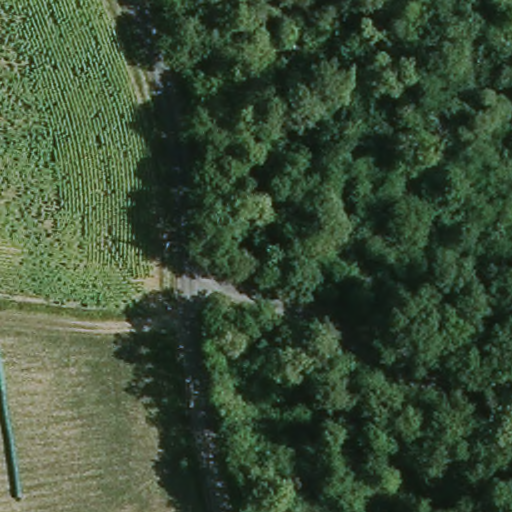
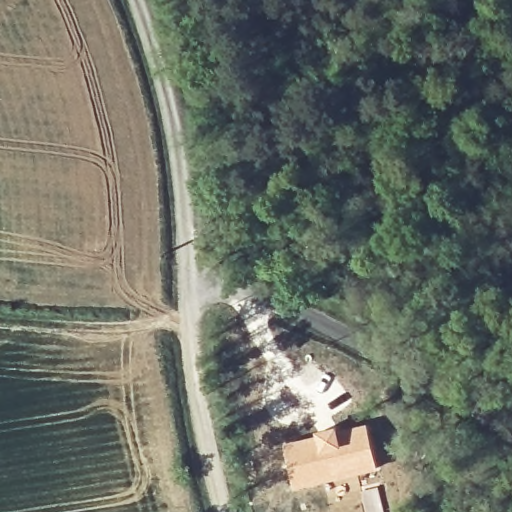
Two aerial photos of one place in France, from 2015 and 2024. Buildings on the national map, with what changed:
new [(337,426),(338,430),(367,423),(378,469),(292,491),(281,443),(337,426)]

